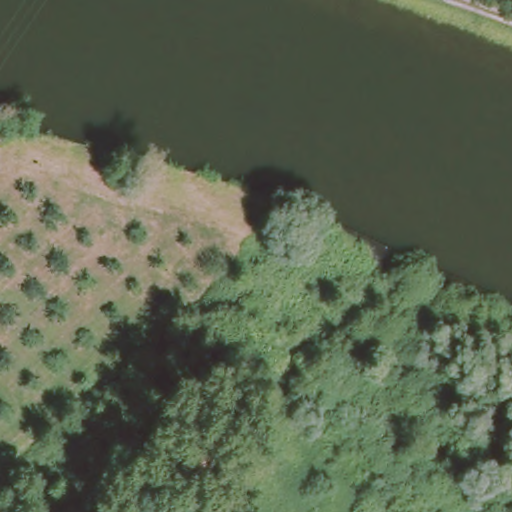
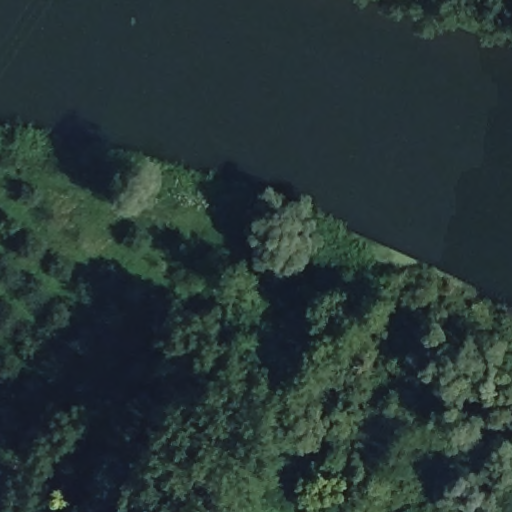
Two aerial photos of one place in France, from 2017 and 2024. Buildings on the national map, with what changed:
unchanged [(219,461),(195,492),(179,479),(202,450),(219,461)]

